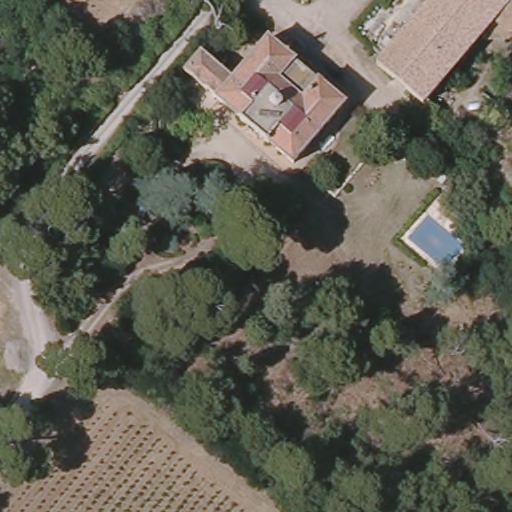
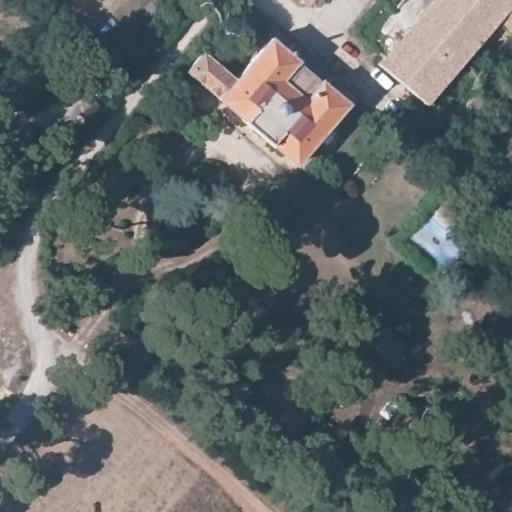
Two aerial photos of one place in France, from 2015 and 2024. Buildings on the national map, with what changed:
unchanged [(444,59),(414,94),(363,50),(369,43),(343,19),(360,0),(375,0),(376,0),(395,16),(444,59)]
unchanged [(395,16),(376,0),(512,0),(512,29),(466,33),(444,59),(395,16)]
unchanged [(183,71),(200,51),(231,79),(279,25),(350,89),(287,164),(183,71)]
unchanged [(447,181),(454,174),(456,171),(466,180),(457,190),(447,181)]
unchanged [(360,347),(368,331),(382,336),(376,351),(360,347)]

